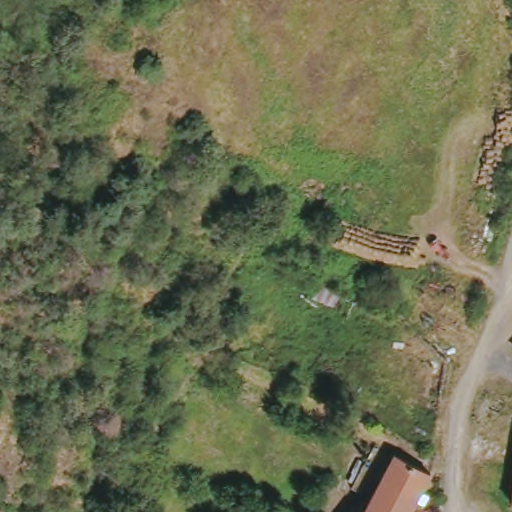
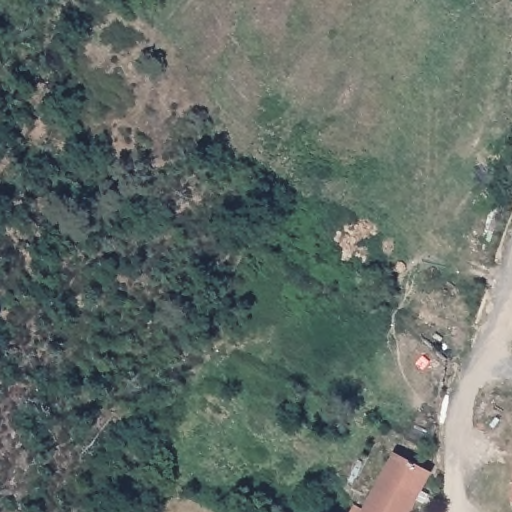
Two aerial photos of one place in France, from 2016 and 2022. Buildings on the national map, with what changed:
unchanged [(416,512),(371,512),(400,458),(432,473),(435,475),(430,483),(416,512)]

